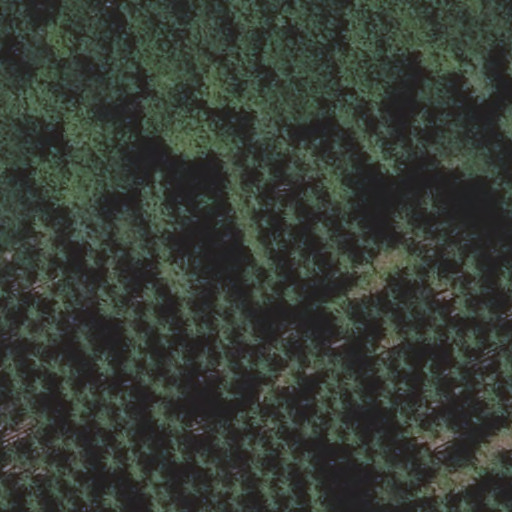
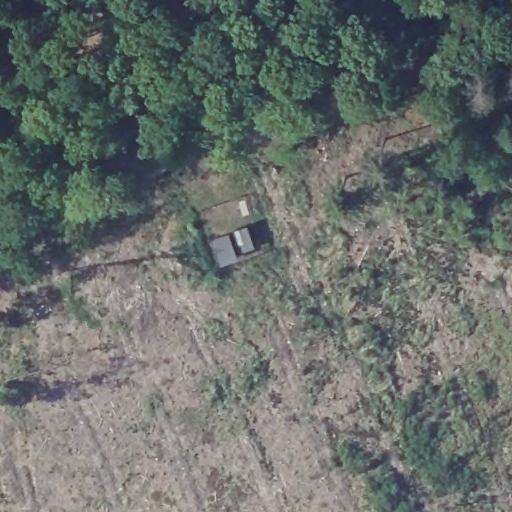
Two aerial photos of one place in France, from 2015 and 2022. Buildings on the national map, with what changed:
unchanged [(245,221),(255,248),(229,261),(219,233),(245,221)]

